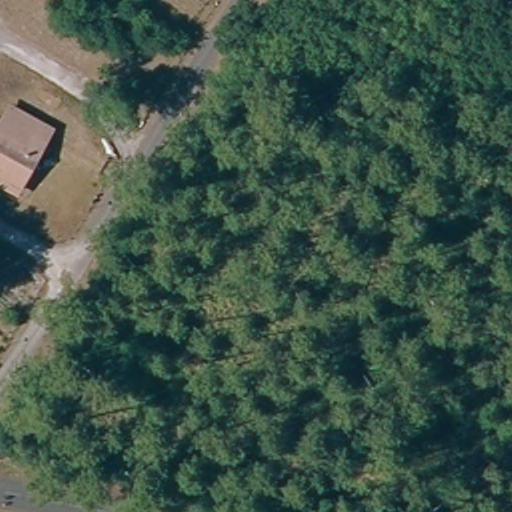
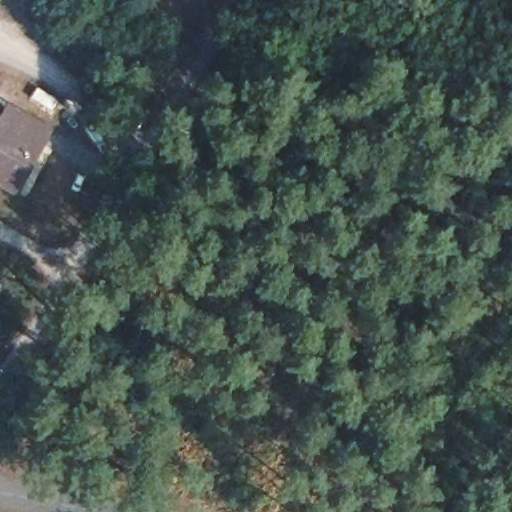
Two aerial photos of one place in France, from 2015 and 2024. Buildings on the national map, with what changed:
unchanged [(15,194),(0,186),(0,127),(9,111),(48,134),(15,194)]

